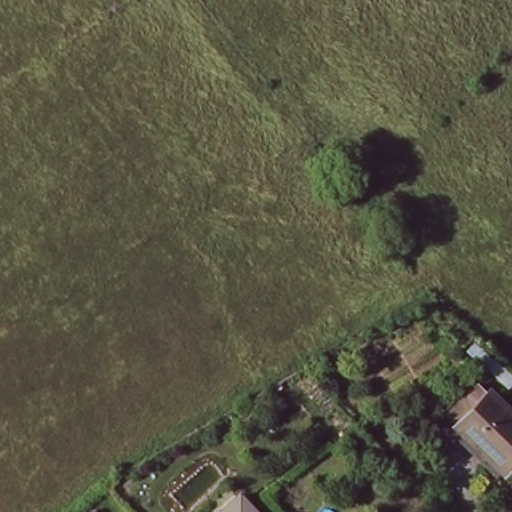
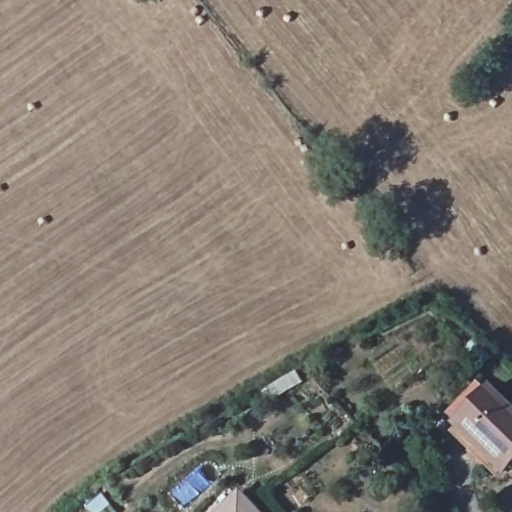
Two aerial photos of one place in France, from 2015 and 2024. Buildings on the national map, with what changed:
unchanged [(490,394),(512,416),(512,467),(506,473),(458,427),(490,394)]
unchanged [(240,492),(261,512),(219,512),(240,492)]

